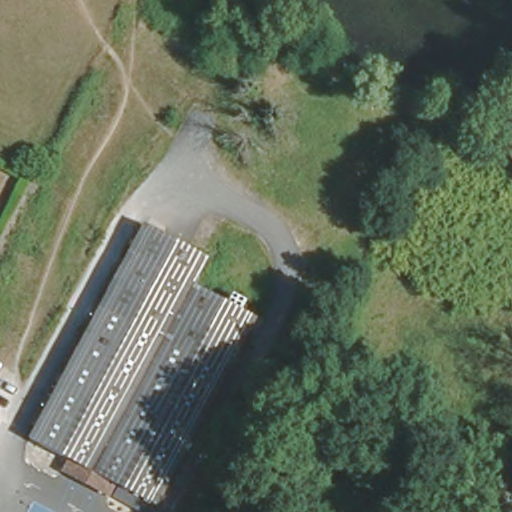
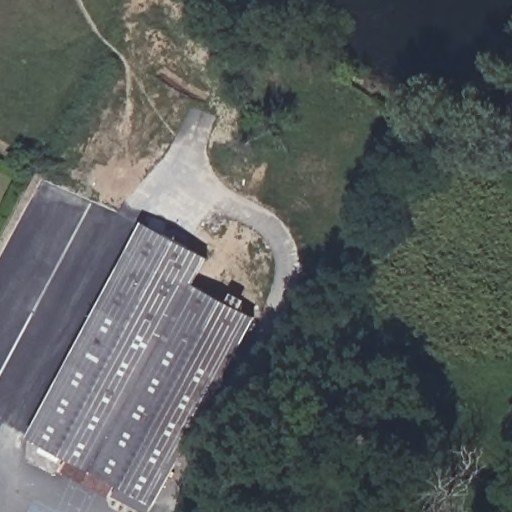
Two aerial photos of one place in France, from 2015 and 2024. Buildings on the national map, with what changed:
unchanged [(61,377),(143,224),(204,257),(190,284),(251,316),(185,443),(61,377)]
unchanged [(63,469),(70,458),(30,435),(61,377),(185,443),(153,503),(115,482),(109,494),(63,469)]

